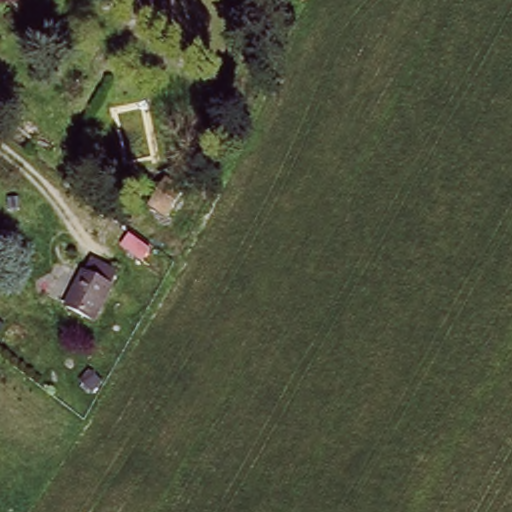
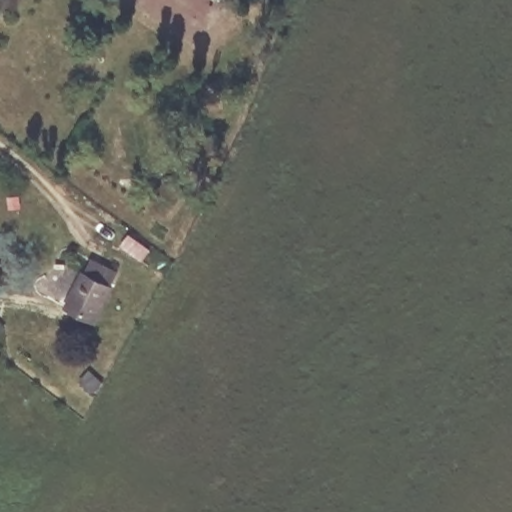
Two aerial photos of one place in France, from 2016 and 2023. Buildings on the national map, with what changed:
unchanged [(169,185),(187,195),(173,216),(157,207),(169,185)]
unchanged [(133,237),(150,251),(144,258),(126,244),(133,237)]
unchanged [(65,312),(60,310),(80,272),(83,274),(90,261),(111,273),(103,286),(110,290),(88,328),(63,315),(65,312)]

